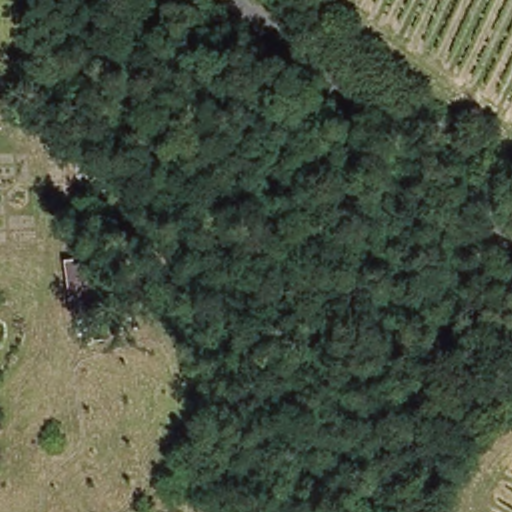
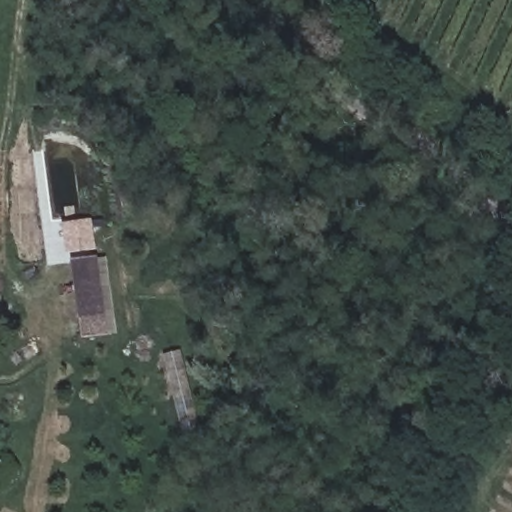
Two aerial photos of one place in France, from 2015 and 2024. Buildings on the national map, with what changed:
new [(108,335),(79,339),(59,223),(90,218),(108,335)]

